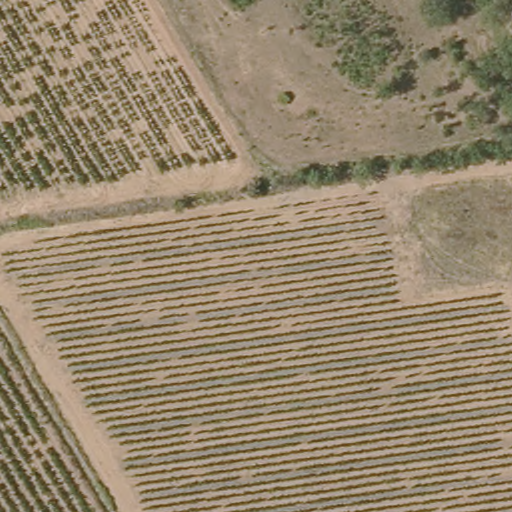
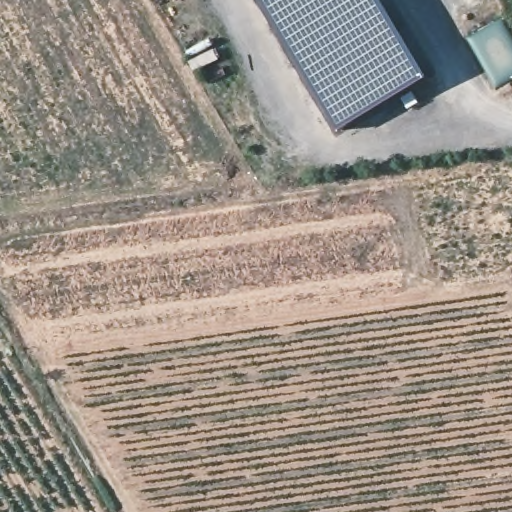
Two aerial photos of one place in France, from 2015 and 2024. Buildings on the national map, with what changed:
new [(430,78),(344,130),(266,0),(384,0),(430,78)]

